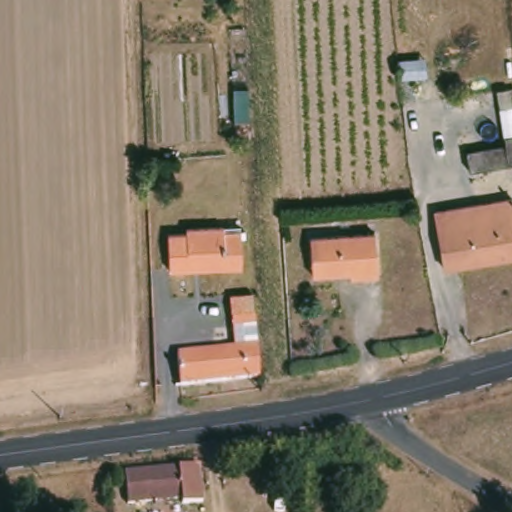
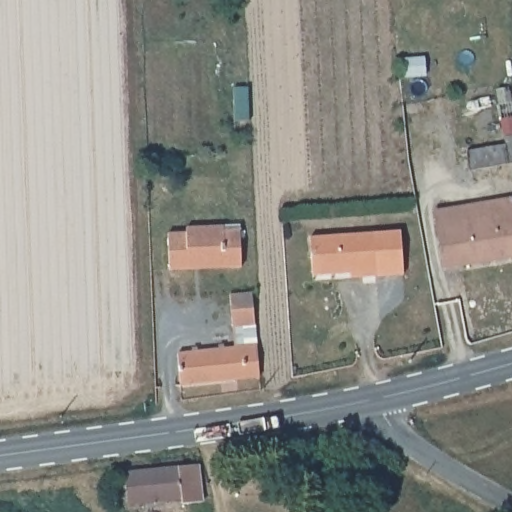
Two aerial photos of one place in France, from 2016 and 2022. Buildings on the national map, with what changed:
unchanged [(481,151),(512,146),(512,168),(483,171),(481,151)]
unchanged [(434,211),(512,199),(512,258),(441,268),(434,211)]
unchanged [(244,271),(164,272),(164,236),(188,235),(189,228),(227,228),(226,235),(243,235),(244,271)]
unchanged [(378,277),(359,278),(359,272),(312,274),(312,237),(376,234),(378,277)]
unchanged [(173,383),(175,355),(243,351),(241,294),(266,294),(269,379),(173,383)]
unchanged [(204,463),(207,500),(188,503),(187,497),(131,503),(129,472),(204,463)]

